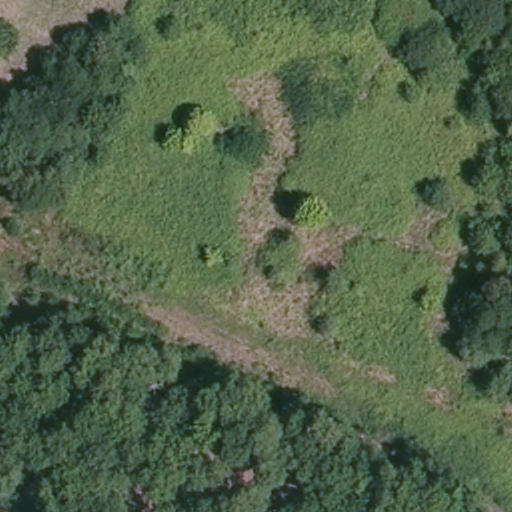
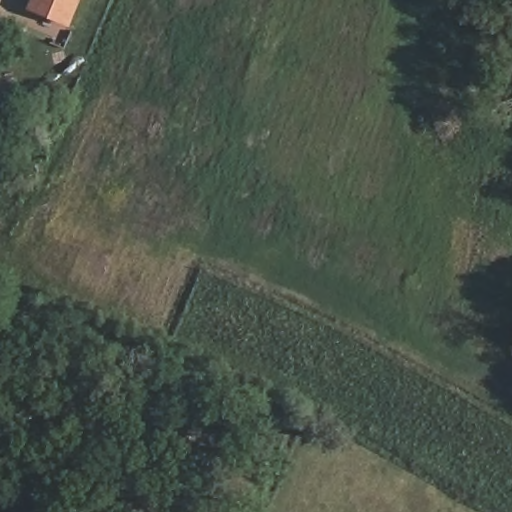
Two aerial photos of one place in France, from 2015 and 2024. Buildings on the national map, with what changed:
new [(80,0),(69,27),(26,9),(29,0),(80,0)]

